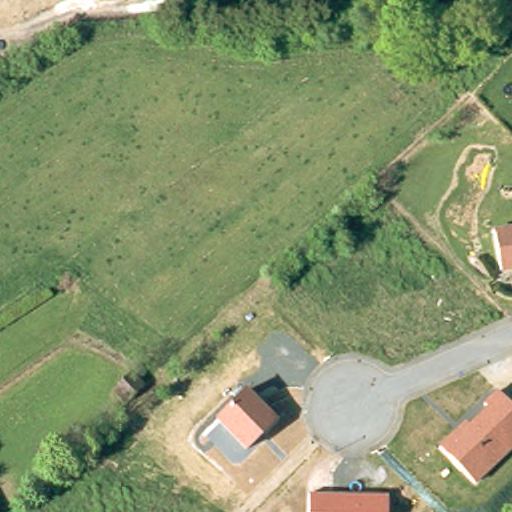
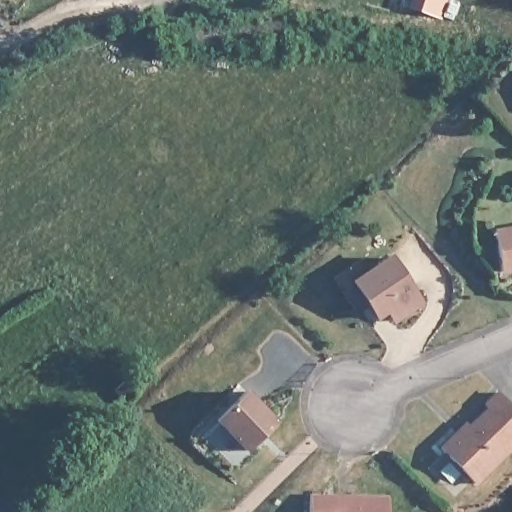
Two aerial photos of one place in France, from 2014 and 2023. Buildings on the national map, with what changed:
unchanged [(421,11),(424,0),(436,0),(432,14),(421,11)]
unchanged [(500,272),(494,229),(512,226),(512,270),(500,272)]
new [(377,319),(350,281),(390,252),(425,302),(395,323),(387,312),(377,319)]
unchanged [(277,419),(245,452),(215,420),(245,388),(277,419)]
unchanged [(468,425),(487,406),(484,403),(497,391),(512,406),(512,451),(476,485),(439,447),(465,422),(468,425)]
unchanged [(387,512),(310,512),(310,494),(387,494),(387,512)]

